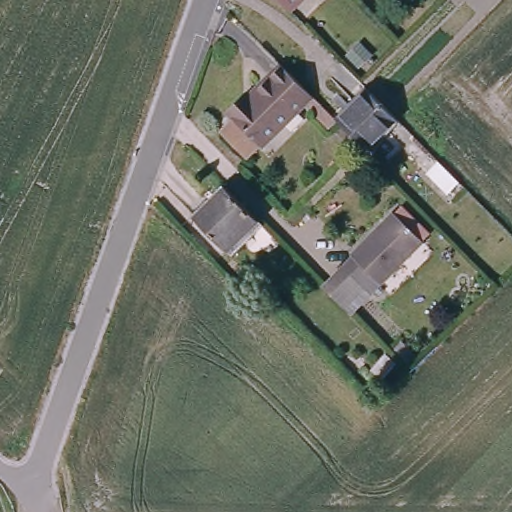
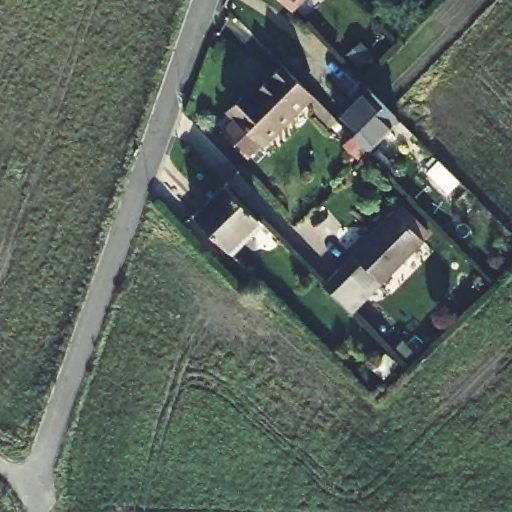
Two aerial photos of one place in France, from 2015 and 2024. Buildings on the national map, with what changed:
unchanged [(287,14),(272,0),(301,0),(287,14)]
unchanged [(260,145),(227,112),(240,98),(245,102),(279,66),(310,95),(260,145)]
unchanged [(365,90),(394,120),(365,148),(335,120),(365,90)]
unchanged [(227,251),(192,215),(224,184),(259,219),(227,251)]
unchanged [(351,314),(321,287),(354,256),(352,253),(392,212),(420,240),(351,314)]

